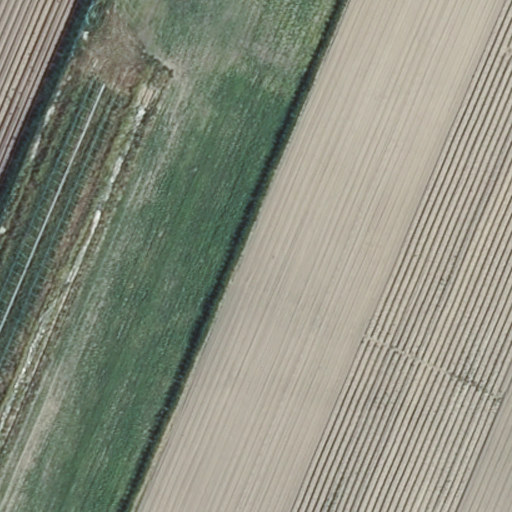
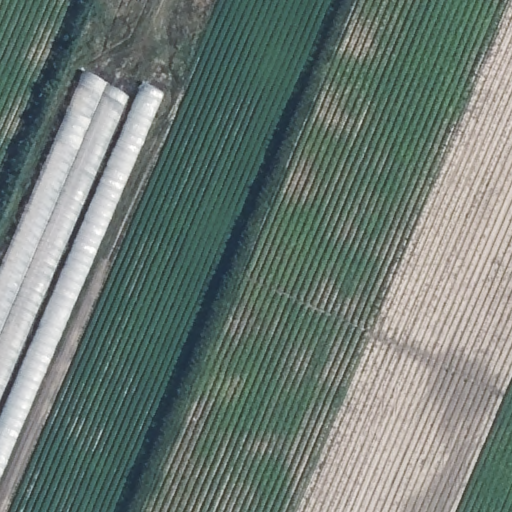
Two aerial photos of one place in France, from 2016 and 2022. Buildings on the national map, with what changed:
demolished [(0,262),(110,4),(162,23),(159,30),(188,45),(0,479),(0,262)]

